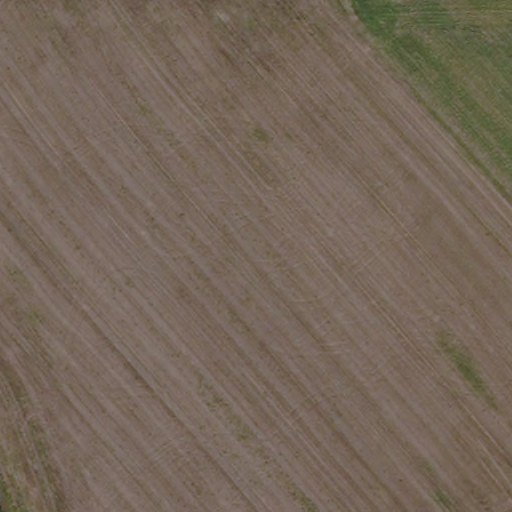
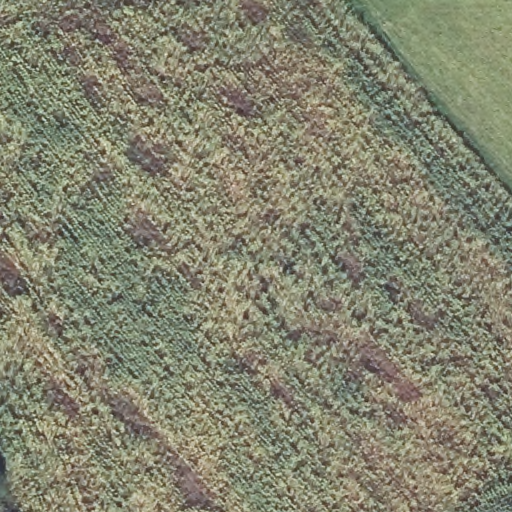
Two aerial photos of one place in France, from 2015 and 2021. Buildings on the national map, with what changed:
[]

